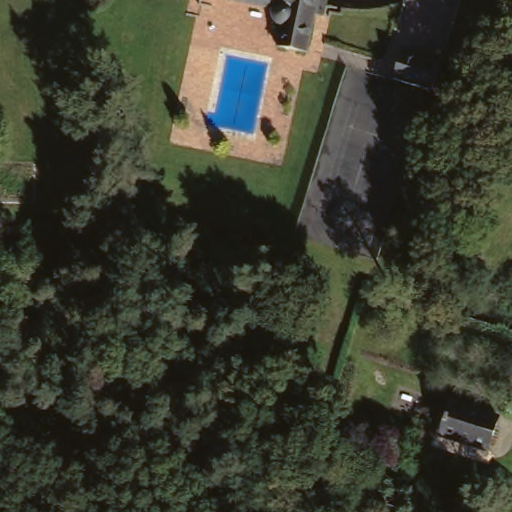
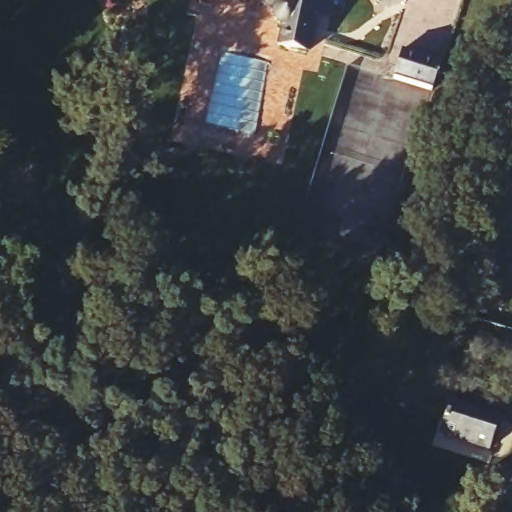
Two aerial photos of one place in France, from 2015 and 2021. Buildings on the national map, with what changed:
unchanged [(311,10),(304,50),(276,44),(280,26),(276,24),(273,22),(270,20),(269,16),(269,13),(270,8),(231,0),(323,0),(321,12),(311,10)]
unchanged [(391,79),(401,49),(440,62),(430,92),(391,79)]
unchanged [(456,408),(491,419),(481,452),(445,441),(456,408)]

